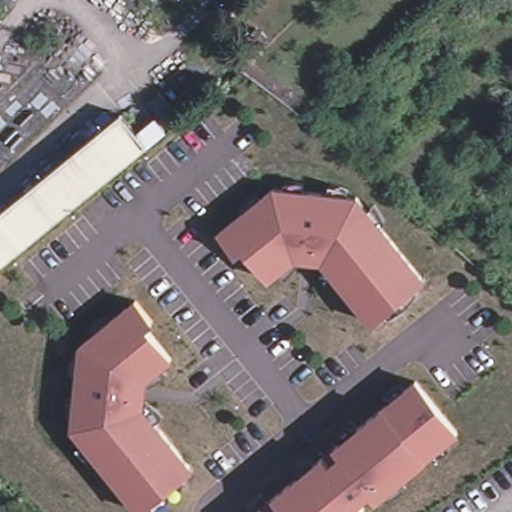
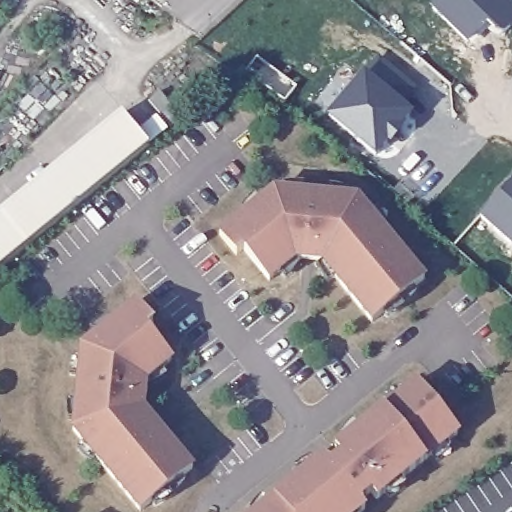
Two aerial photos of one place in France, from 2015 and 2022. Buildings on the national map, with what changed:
new [(432,0),(512,0),(512,25),(502,34),(487,19),(469,41),(430,1),(432,0)]
new [(412,86),(398,102),(409,111),(397,126),(400,129),(390,140),(387,138),(375,152),(330,113),(378,57),(412,86)]
unchanged [(149,146),(0,268),(0,209),(119,112),(121,111),(127,119),(149,146)]
new [(512,179),(512,241),(481,212),(512,179)]
unchanged [(323,259),(295,256),(270,277),(244,245),(237,251),(220,230),(275,186),(358,195),(425,277),(372,320),(323,259)]
unchanged [(140,508),(73,425),(82,342),(137,298),(154,318),(147,324),(172,356),(146,377),(144,404),(192,465),(140,508)]
unchanged [(330,461),(340,452),(335,445),(417,379),(458,430),(376,497),(370,489),(359,499),(365,506),(357,512),(252,512),(324,454),(330,461)]

